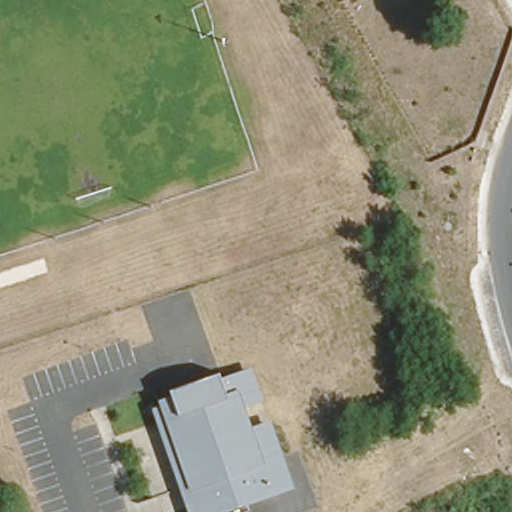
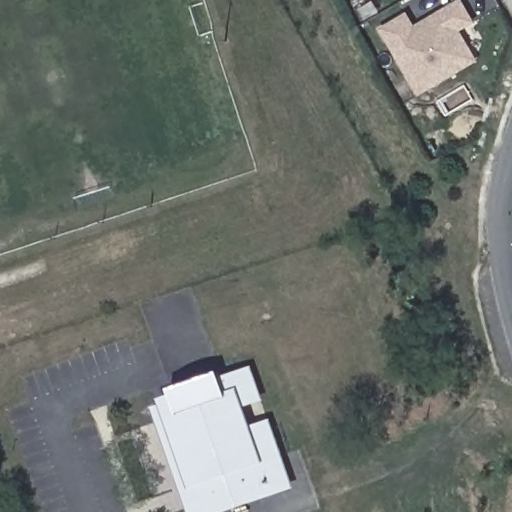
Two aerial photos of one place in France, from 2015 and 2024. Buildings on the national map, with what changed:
new [(448,74),(418,91),(381,27),(405,14),(412,27),(460,1),(470,21),(455,29),(465,46),(473,59),(448,74)]
unchanged [(158,398),(169,394),(167,385),(216,368),(217,374),(253,364),(296,487),(222,512),(185,512),(150,406),(160,403),(158,398)]

